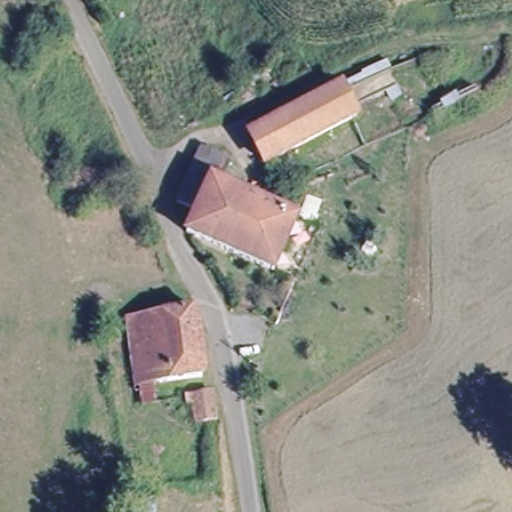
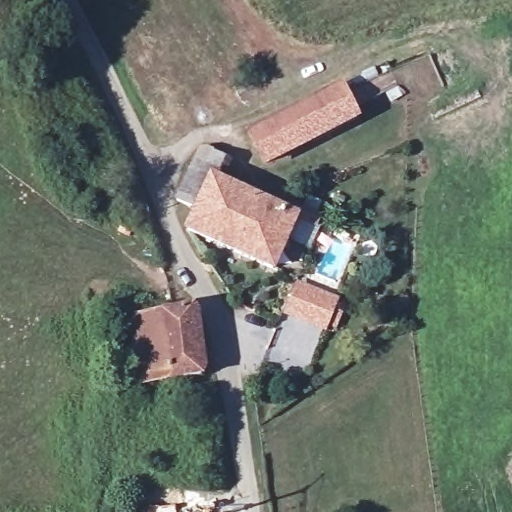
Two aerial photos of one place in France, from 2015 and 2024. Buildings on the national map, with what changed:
unchanged [(345,77),(362,110),(265,154),(251,121),(322,87),(345,77)]
unchanged [(199,143),(229,157),(223,175),(302,211),(280,264),(196,223),(199,207),(177,196),(179,187),(199,143)]
new [(296,282),(340,300),(327,334),(283,316),(296,282)]
unchanged [(202,368),(141,373),(135,305),(195,300),(202,368)]
unchanged [(209,395),(211,425),(205,425),(197,427),(193,397),(200,395),(209,395)]

